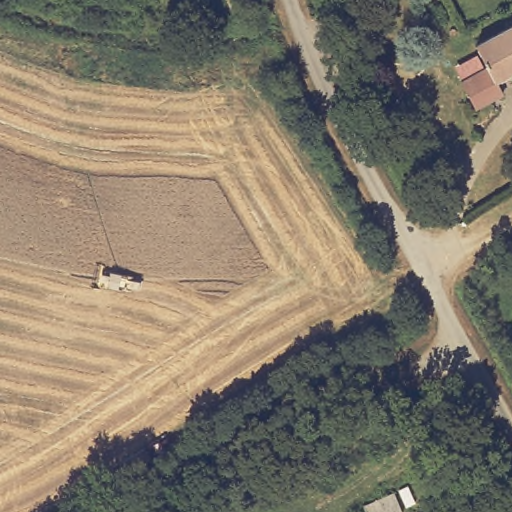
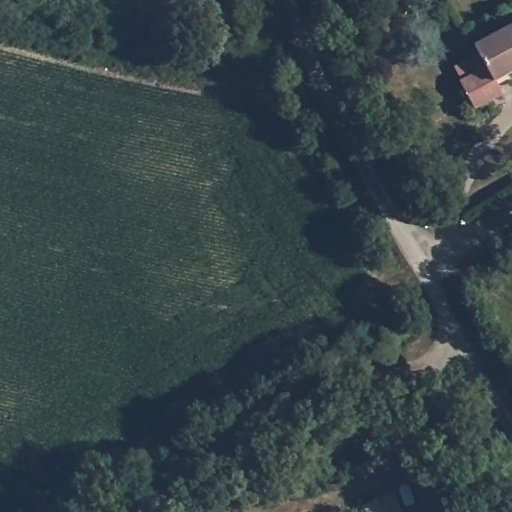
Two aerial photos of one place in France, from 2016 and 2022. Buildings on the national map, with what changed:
unchanged [(512,70),(492,83),(500,96),(472,113),(457,89),(483,72),(468,50),(512,23),(512,70)]
unchanged [(398,510),(393,512),(363,512),(358,501),(388,488),(398,510)]

